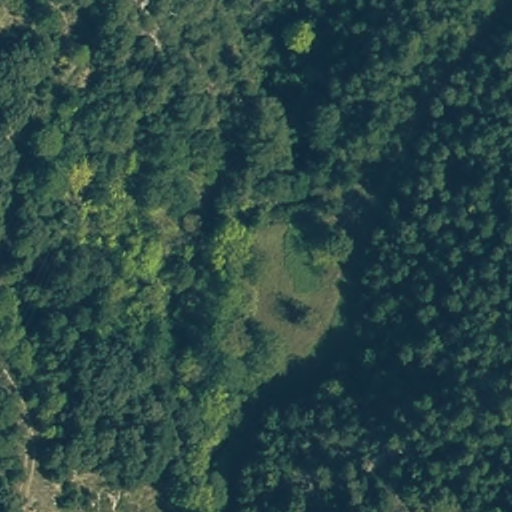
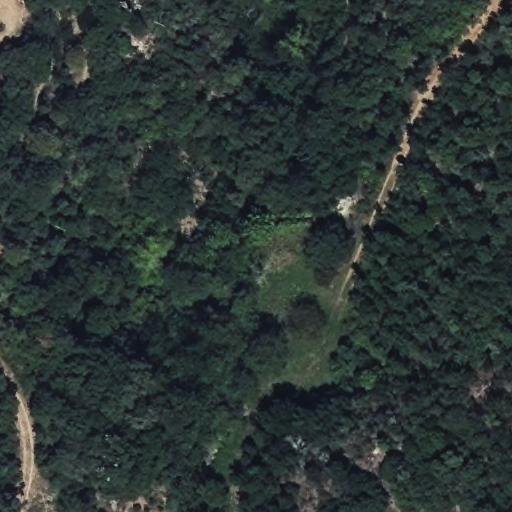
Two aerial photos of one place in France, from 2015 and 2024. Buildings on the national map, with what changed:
[]

